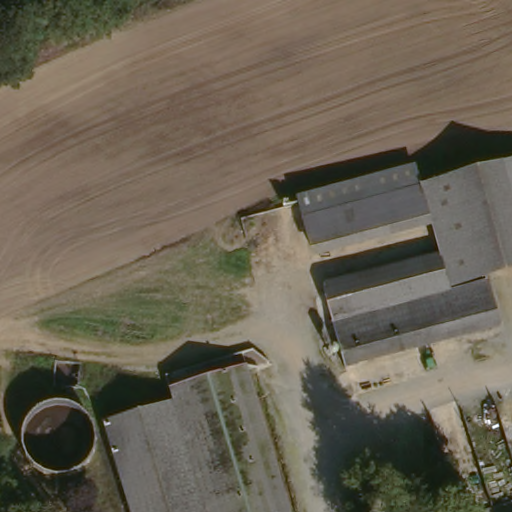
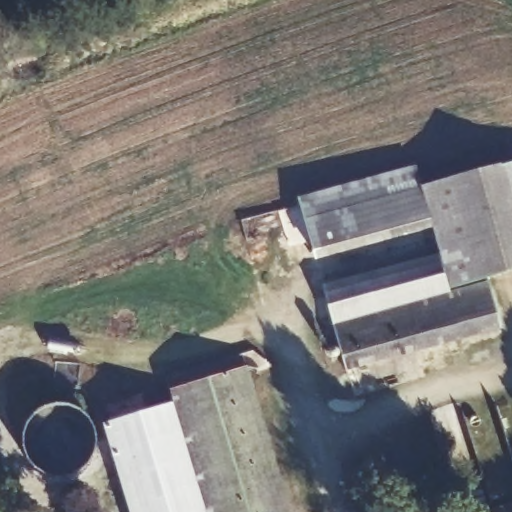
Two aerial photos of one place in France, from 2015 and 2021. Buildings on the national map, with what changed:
unchanged [(512,164),(512,272),(484,283),(448,294),(438,256),(428,221),(419,191),(512,164)]
unchanged [(412,167),(419,191),(305,224),(297,198),(412,167)]
unchanged [(314,255),(305,224),(419,191),(428,221),(314,255)]
unchanged [(326,289),(438,256),(448,294),(337,327),(326,289)]
unchanged [(337,327),(448,294),(484,283),(497,328),(348,373),(337,327)]
unchanged [(176,386),(251,367),(289,512),(131,512),(108,419),(178,402),(176,386)]

